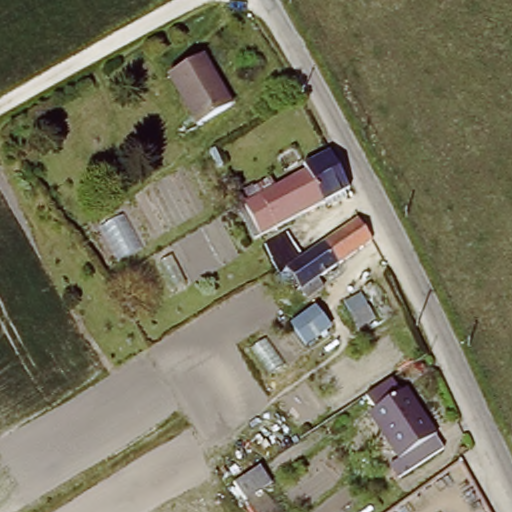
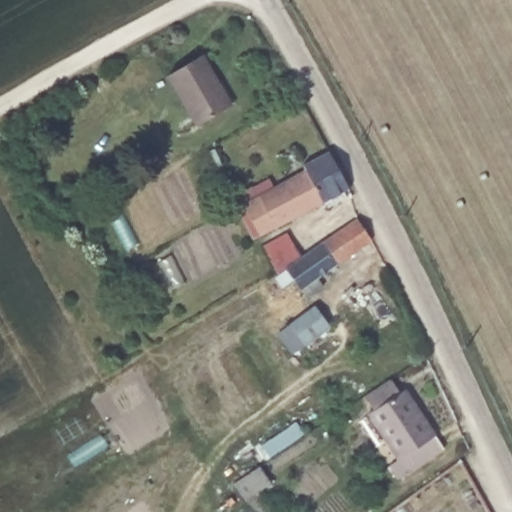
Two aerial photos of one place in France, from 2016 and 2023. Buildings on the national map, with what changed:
unchanged [(228,111),(199,126),(170,77),(203,57),(220,85),(232,109),(228,111)]
unchanged [(348,187),(340,192),(343,199),(327,208),(322,202),(262,235),(244,202),(238,192),(252,184),(259,197),(309,170),(306,165),(329,152),(348,187)]
unchanged [(231,162),(226,164),(223,158),(229,156),(231,162)]
unchanged [(301,288),(286,268),(358,221),(372,242),(301,288)]
unchanged [(330,329),(305,346),(291,325),(316,308),(330,329)]
unchanged [(396,463),(387,451),(395,445),(364,398),(367,396),(359,383),(385,366),(394,380),(401,376),(439,435),(396,463)]
unchanged [(247,501),(235,483),(261,466),(272,483),(247,501)]

